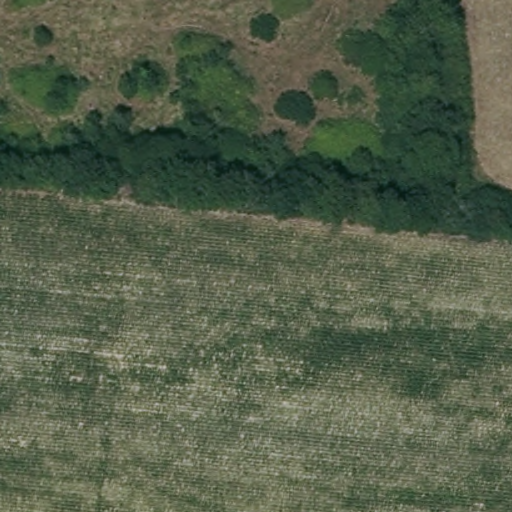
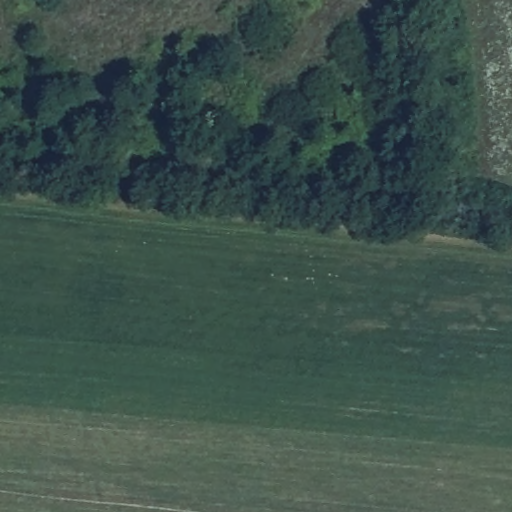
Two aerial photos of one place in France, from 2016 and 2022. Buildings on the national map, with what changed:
[]

